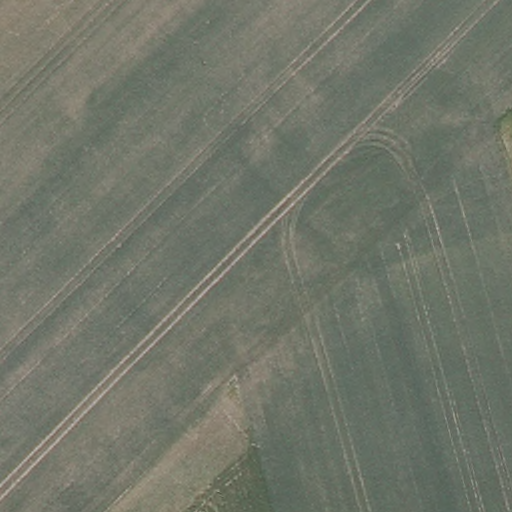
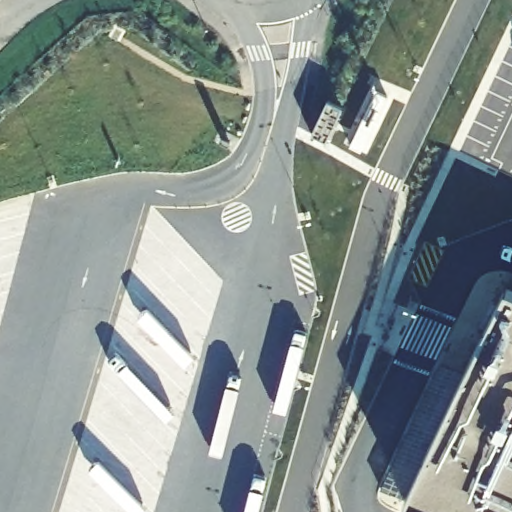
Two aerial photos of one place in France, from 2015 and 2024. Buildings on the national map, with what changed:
new [(512,512),(387,512),(494,291),(512,300),(512,512)]

